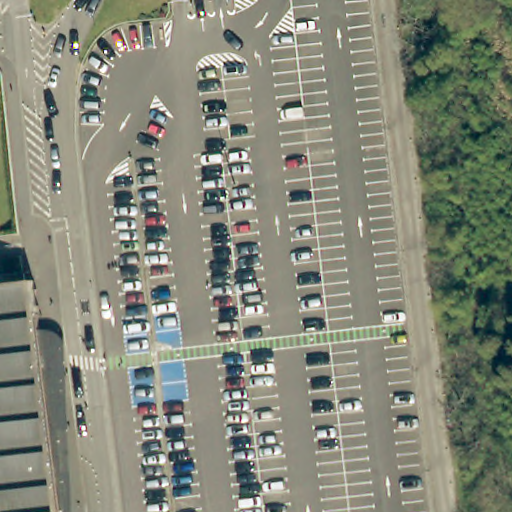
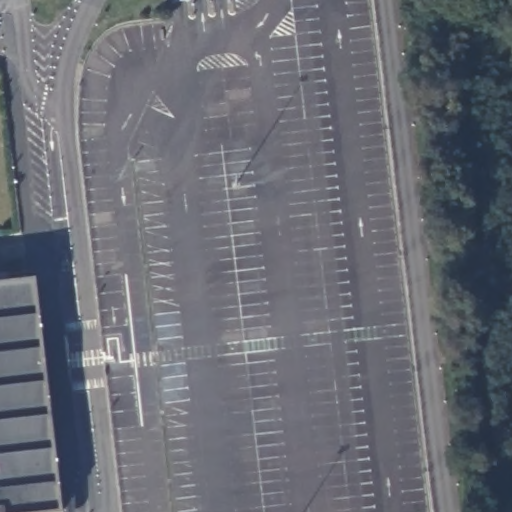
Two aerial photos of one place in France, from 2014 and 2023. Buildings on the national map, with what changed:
unchanged [(0,512),(0,283),(28,279),(59,512),(0,512)]

